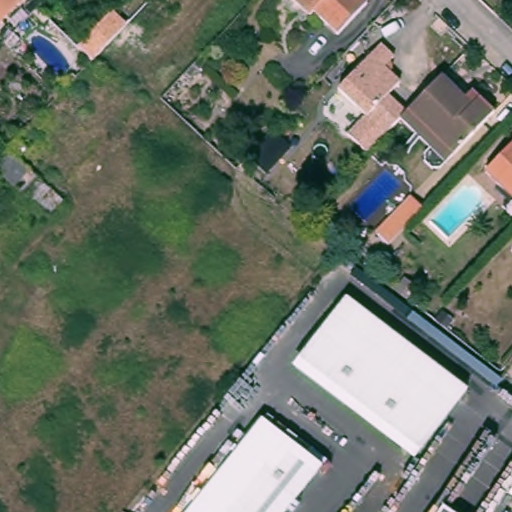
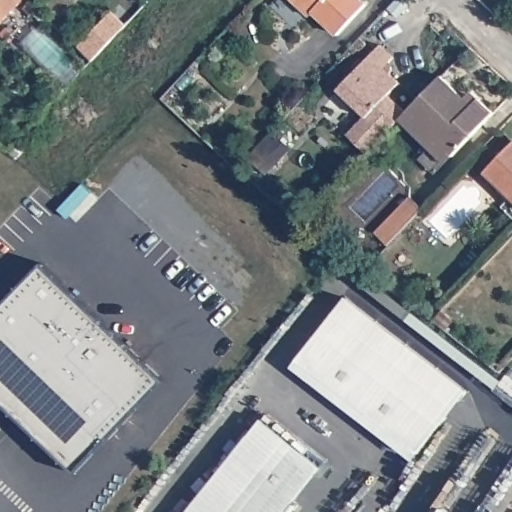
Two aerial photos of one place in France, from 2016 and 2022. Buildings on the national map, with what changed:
unchanged [(0,0),(24,0),(0,24),(0,0)]
unchanged [(337,36),(313,13),(309,17),(291,0),(360,0),(364,5),(337,36)]
new [(113,11),(127,24),(93,60),(79,47),(113,11)]
new [(36,27),(83,71),(59,96),(13,52),(36,27)]
unchanged [(376,51),(388,62),(384,66),(387,69),(388,71),(388,74),(387,76),(386,80),(394,89),(362,122),(332,95),(376,51)]
unchanged [(399,120),(406,112),(441,77),(464,100),(472,92),(479,99),(493,114),(452,157),(444,164),(399,120)]
unchanged [(498,213),(508,204),(480,177),(509,147),(512,149),(512,227),(498,213)]
demolished [(0,156),(5,150),(65,202),(46,222),(0,181),(0,156)]
unchanged [(410,197),(423,209),(388,245),(375,232),(410,197)]
new [(164,378),(79,472),(0,397),(0,310),(44,263),(164,378)]
unchanged [(340,305),(461,397),(414,457),(294,366),(340,305)]
unchanged [(261,416),(322,463),(283,512),(186,512),(261,416)]
unchanged [(440,508),(445,512),(438,512),(440,508)]

